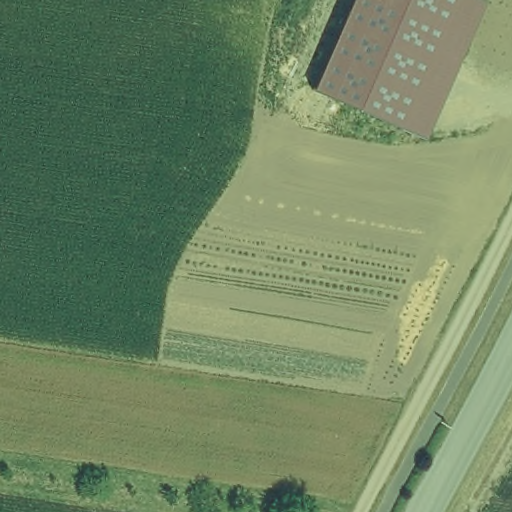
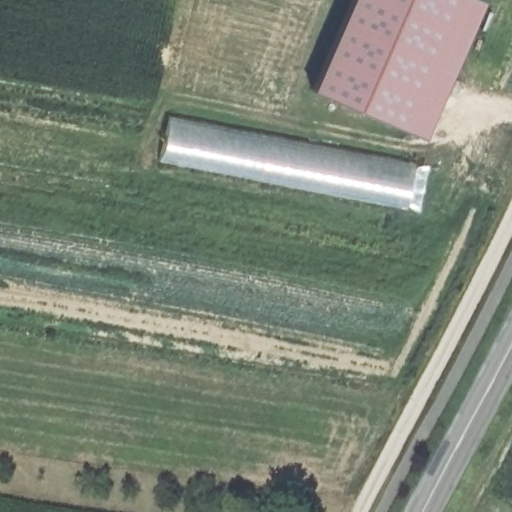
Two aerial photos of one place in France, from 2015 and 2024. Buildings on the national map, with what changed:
unchanged [(425,138),(312,88),(350,0),(480,0),(483,1),(425,138)]
new [(417,166),(407,211),(160,164),(170,116),(417,166)]

